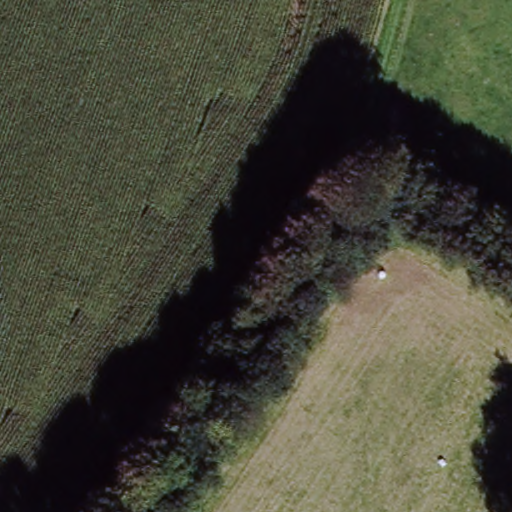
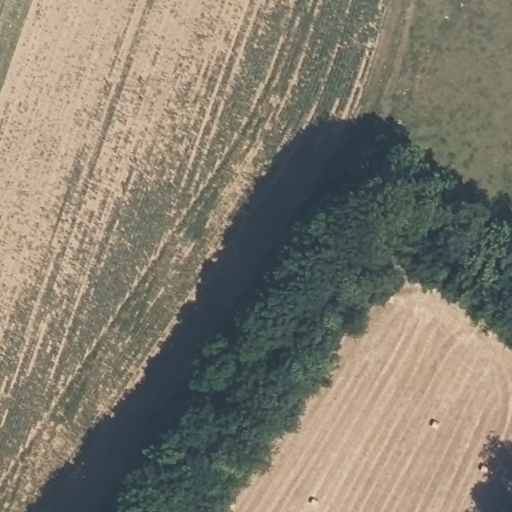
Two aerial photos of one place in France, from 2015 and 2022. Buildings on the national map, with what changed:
[]

